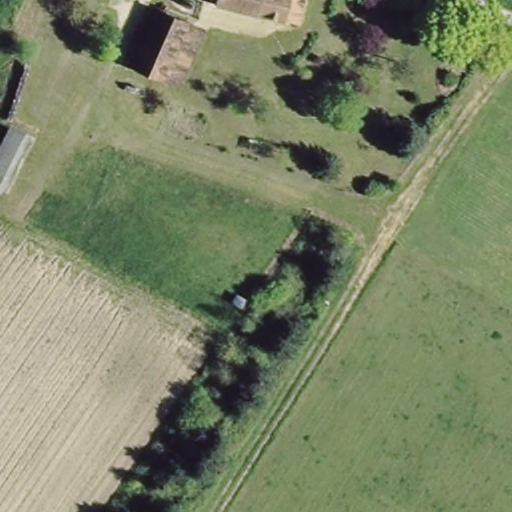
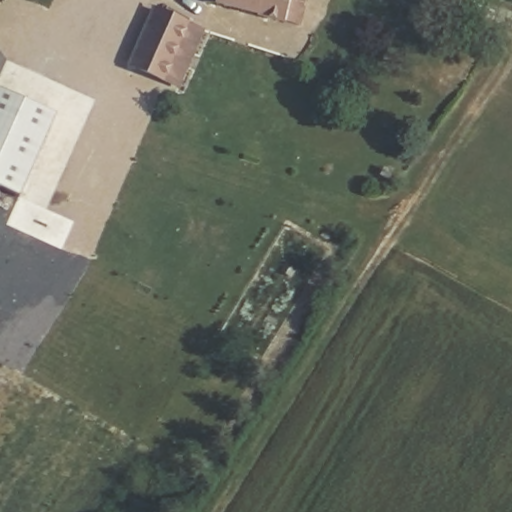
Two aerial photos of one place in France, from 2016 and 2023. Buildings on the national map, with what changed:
unchanged [(303,0),(300,15),(197,4),(198,0),(303,0)]
unchanged [(151,8),(203,30),(178,87),(127,67),(151,8)]
new [(0,191),(0,90),(56,114),(17,198),(0,191)]
demolished [(30,137),(3,199),(0,197),(0,140),(6,127),(30,137)]

